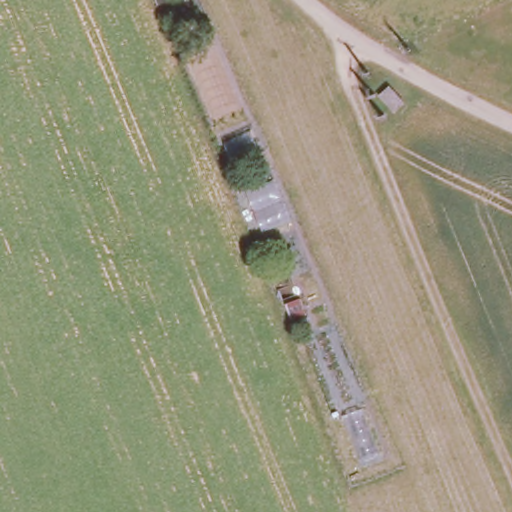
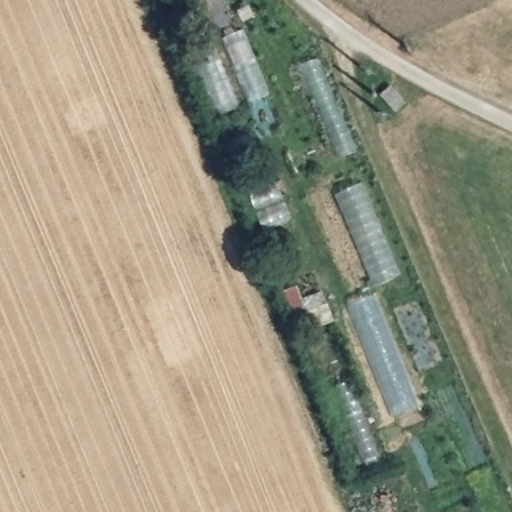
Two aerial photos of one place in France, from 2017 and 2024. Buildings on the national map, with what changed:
new [(336,194),(361,184),(400,277),(375,287),(336,194)]
new [(350,304),(374,295),(417,408),(393,417),(350,304)]

